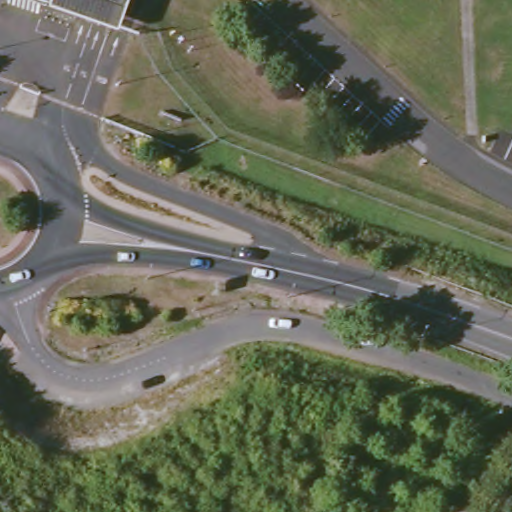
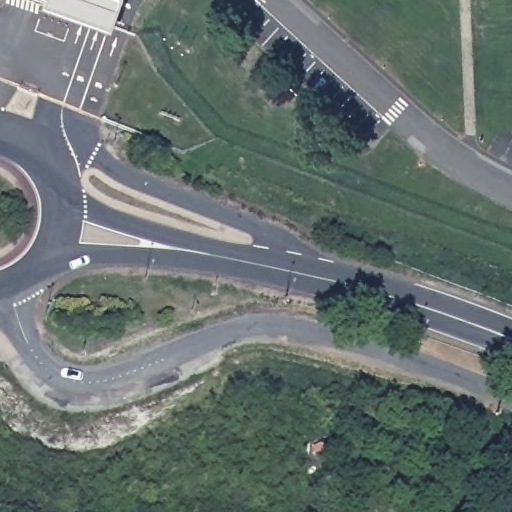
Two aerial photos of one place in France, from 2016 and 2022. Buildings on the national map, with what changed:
unchanged [(113,30),(44,3),(45,0),(123,0),(113,30)]

